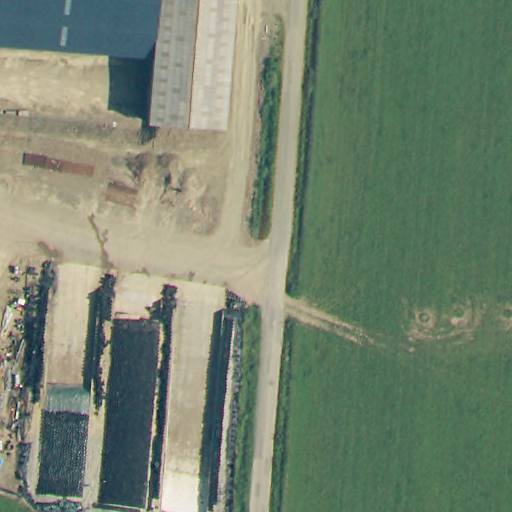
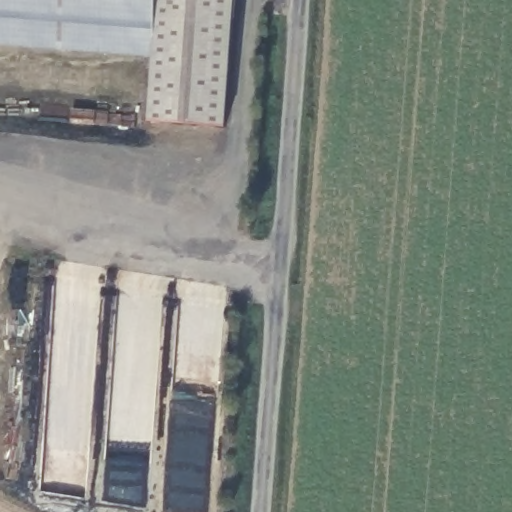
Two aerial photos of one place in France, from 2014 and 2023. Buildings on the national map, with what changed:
unchanged [(147,125),(152,60),(0,48),(0,0),(235,0),(225,131),(147,125)]

